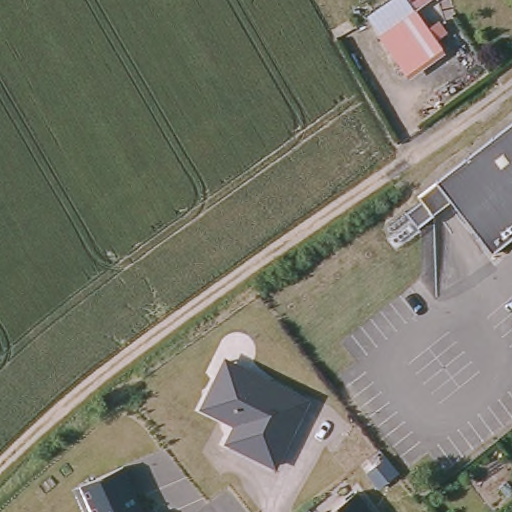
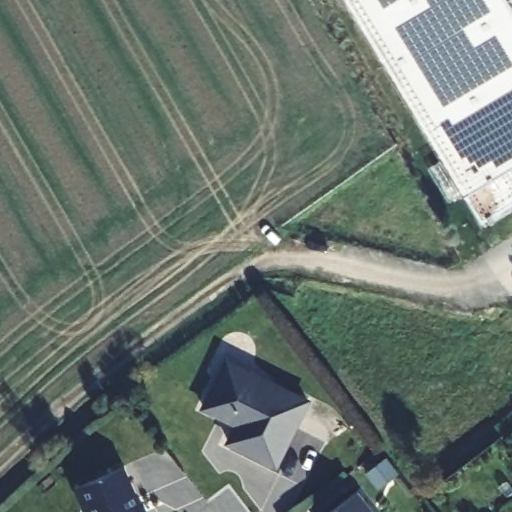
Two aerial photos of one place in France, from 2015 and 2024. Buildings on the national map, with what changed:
new [(512,0),(512,164),(506,167),(512,177),(512,201),(488,216),(439,137),(355,0),(512,0)]
demolished [(379,43),(399,26),(417,11),(409,0),(440,0),(421,15),(418,17),(444,54),(408,81),(381,45),(379,43)]
demolished [(436,176),(512,117),(512,234),(493,249),(449,192),(437,178),(436,176)]
unchanged [(238,425),(203,409),(219,376),(227,361),(244,370),(308,402),(276,467),(228,443),(238,425)]
unchanged [(73,490),(123,467),(137,497),(134,499),(140,512),(83,512),(73,490)]
unchanged [(356,493),(371,512),(332,512),(356,493)]

